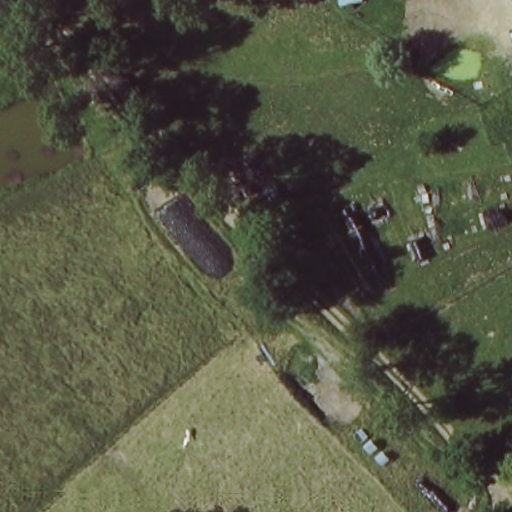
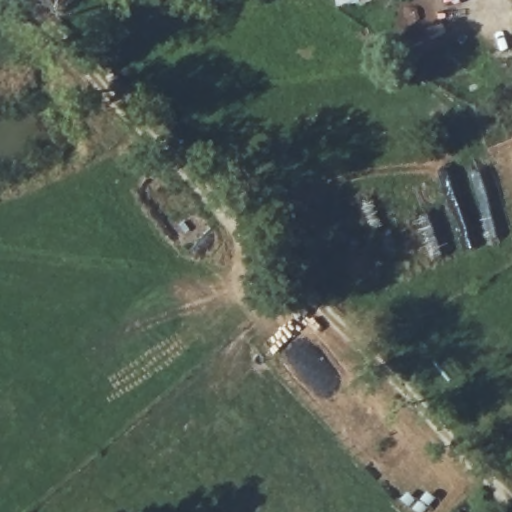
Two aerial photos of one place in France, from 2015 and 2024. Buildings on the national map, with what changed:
[]

